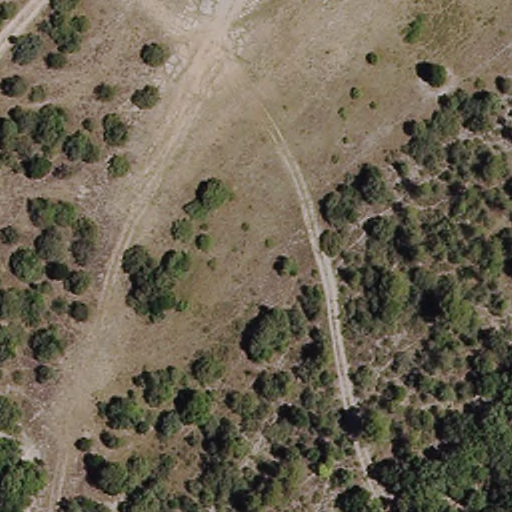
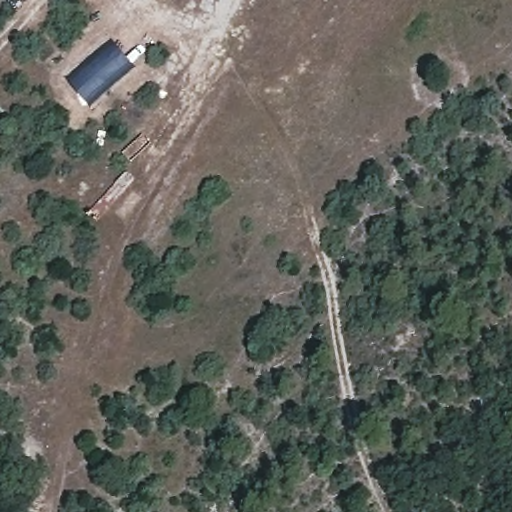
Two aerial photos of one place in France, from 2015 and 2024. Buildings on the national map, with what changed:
new [(112,41),(135,67),(90,107),(68,81),(112,41)]

